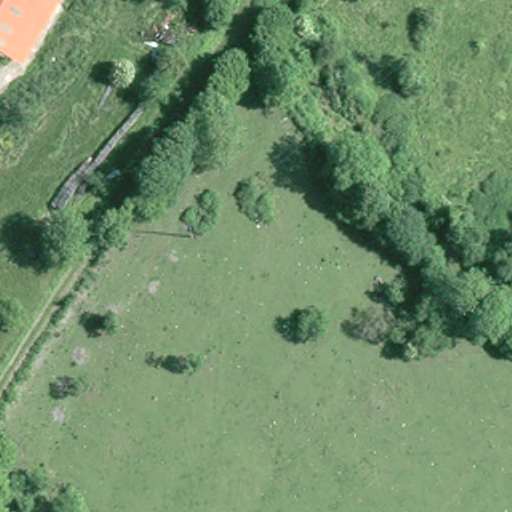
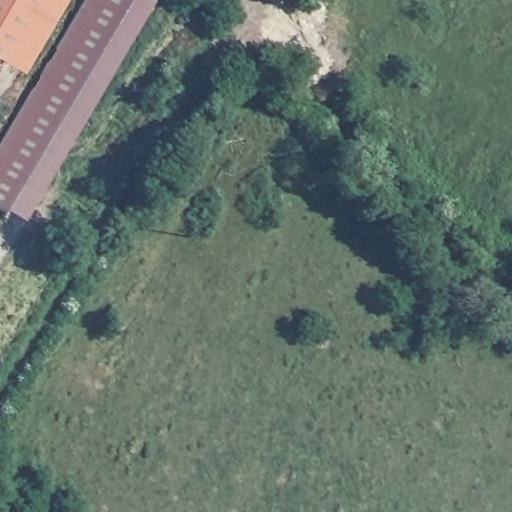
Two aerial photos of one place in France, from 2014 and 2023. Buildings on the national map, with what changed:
unchanged [(0,54),(0,0),(61,0),(23,67),(10,60),(0,54)]
new [(0,207),(0,145),(85,0),(155,0),(27,222),(0,207)]

